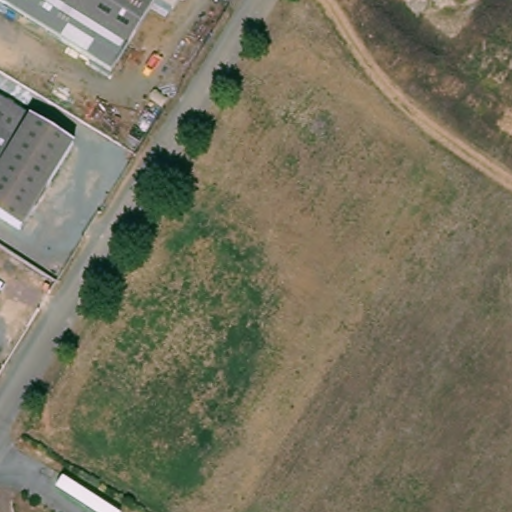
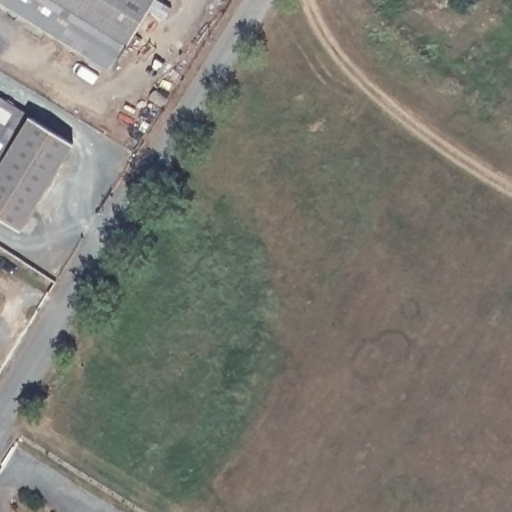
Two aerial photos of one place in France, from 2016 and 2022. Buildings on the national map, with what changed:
unchanged [(108,67),(0,6),(0,0),(147,0),(108,67)]
unchanged [(20,227),(0,215),(0,98),(71,139),(28,213),(36,218),(29,232),(20,227)]

